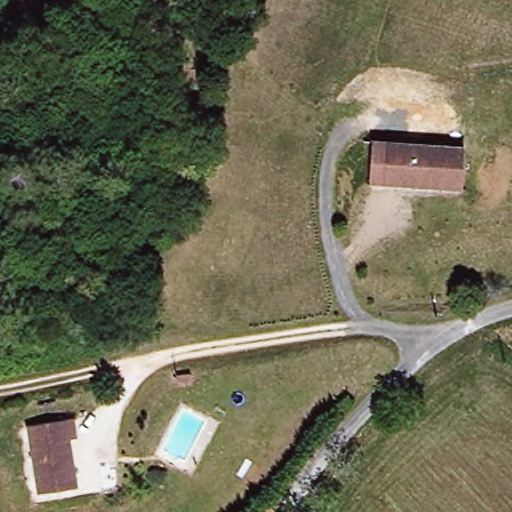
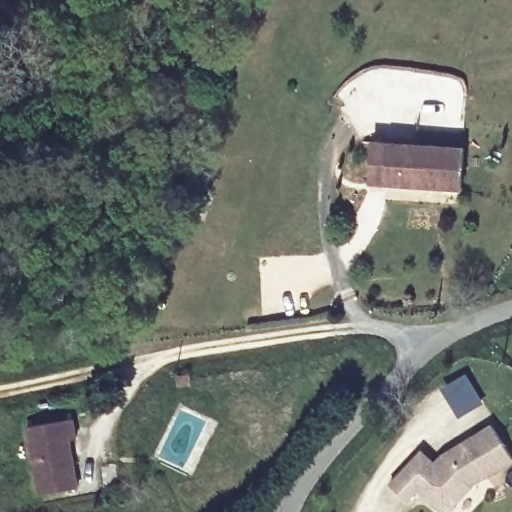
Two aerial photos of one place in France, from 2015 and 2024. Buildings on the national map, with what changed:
unchanged [(460,180),(385,188),(380,147),(455,139),(460,180)]
unchanged [(29,425),(77,419),(82,452),(73,452),(75,466),(77,485),(37,489),(35,471),(29,425)]
new [(512,461),(474,484),(448,512),(443,512),(420,491),(409,502),(387,483),(420,448),(433,460),(442,452),(491,422),(512,457),(512,461)]

